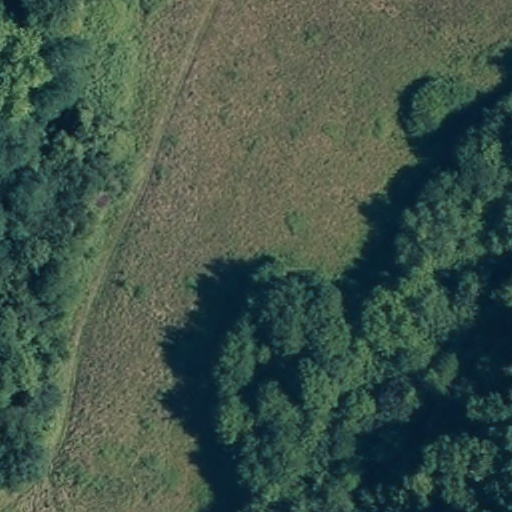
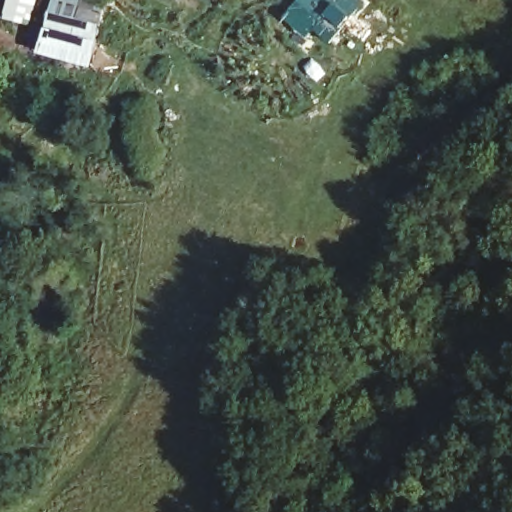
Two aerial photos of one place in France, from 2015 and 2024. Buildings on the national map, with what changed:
new [(3,19),(8,0),(38,0),(31,27),(3,19)]
new [(94,0),(106,3),(91,69),(37,55),(52,0),(94,0)]
new [(300,3),(302,0),(342,0),(323,22),(300,3)]

